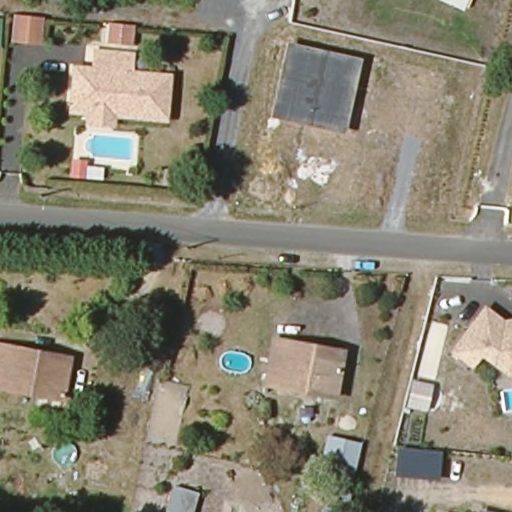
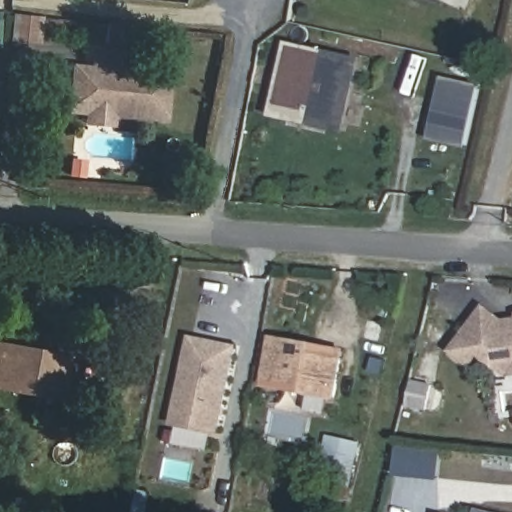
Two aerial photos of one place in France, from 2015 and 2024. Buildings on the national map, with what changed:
unchanged [(38,46),(11,44),(13,19),(40,21),(38,46)]
unchanged [(128,46),(103,44),(104,24),(130,26),(128,46)]
unchanged [(342,134),(269,119),(286,41),(361,58),(342,134)]
unchanged [(90,102),(94,47),(130,50),(129,69),(166,72),(163,117),(119,114),(89,112),(90,102)]
new [(440,84),(475,92),(464,138),(430,130),(440,84)]
unchanged [(501,321),(512,319),(512,378),(509,378),(480,358),(470,368),(448,352),(483,306),(501,321)]
new [(171,426),(189,336),(238,346),(220,436),(171,426)]
unchanged [(340,350),(332,396),(263,385),(271,340),(340,350)]
unchanged [(61,397),(0,386),(0,346),(68,361),(61,397)]
unchanged [(361,442),(347,508),(328,503),(335,474),(321,470),(327,435),(361,442)]
new [(395,447),(437,450),(436,477),(393,475),(395,447)]
unchanged [(488,512),(474,512),(475,509),(488,512)]

